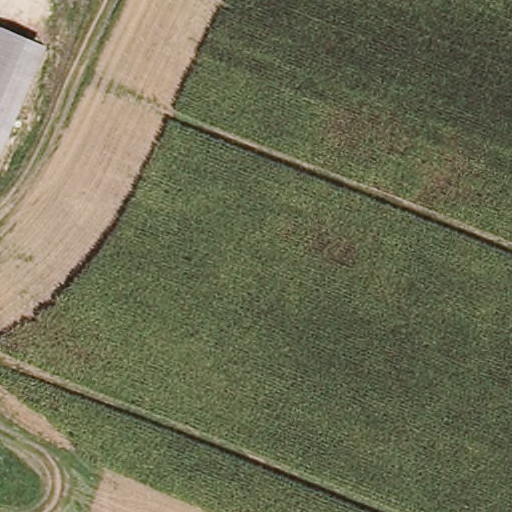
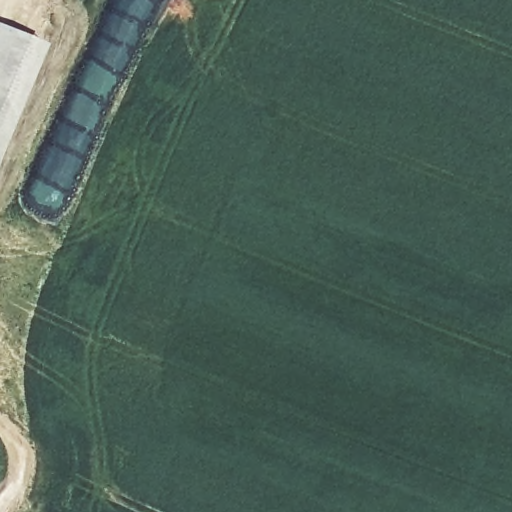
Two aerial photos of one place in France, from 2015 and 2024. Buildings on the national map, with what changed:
unchanged [(42,44),(0,149),(0,28),(42,44)]

